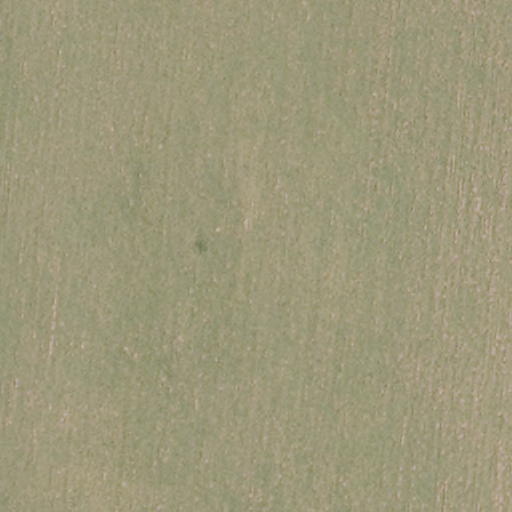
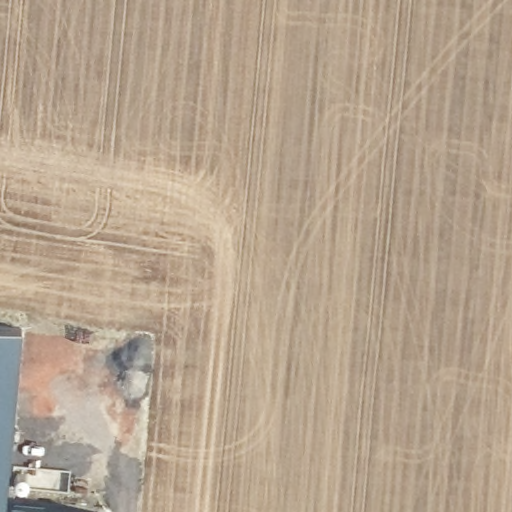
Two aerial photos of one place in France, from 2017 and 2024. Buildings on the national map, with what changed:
new [(22,326),(5,505),(83,512),(0,512),(0,324),(22,326)]

